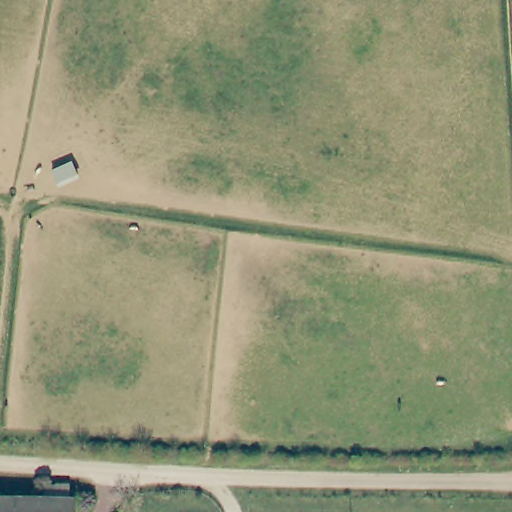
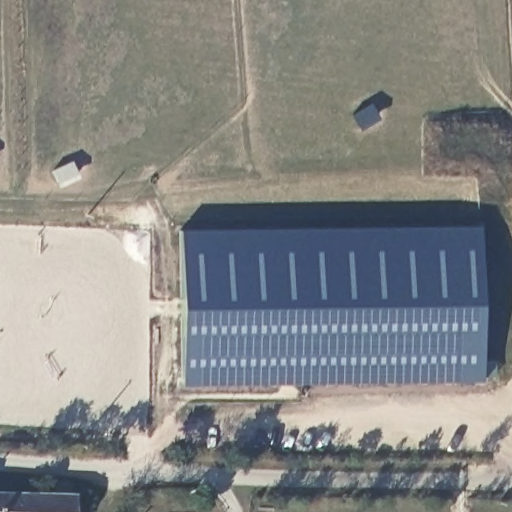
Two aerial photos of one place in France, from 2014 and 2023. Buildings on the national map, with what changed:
new [(484,382),(182,385),(181,230),(482,227),(484,382)]
unchanged [(42,480),(67,480),(67,493),(74,493),(74,512),(0,512),(0,491),(42,492),(42,480)]

